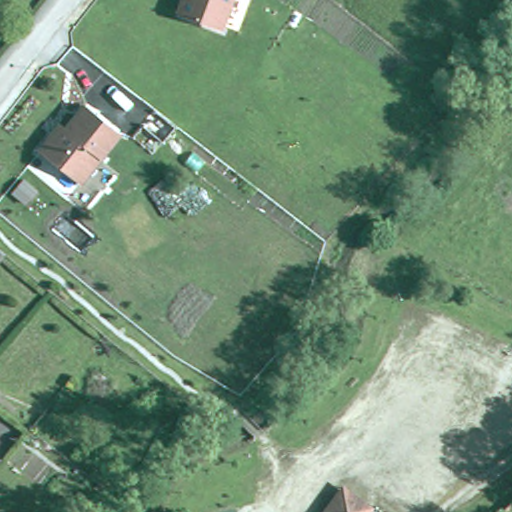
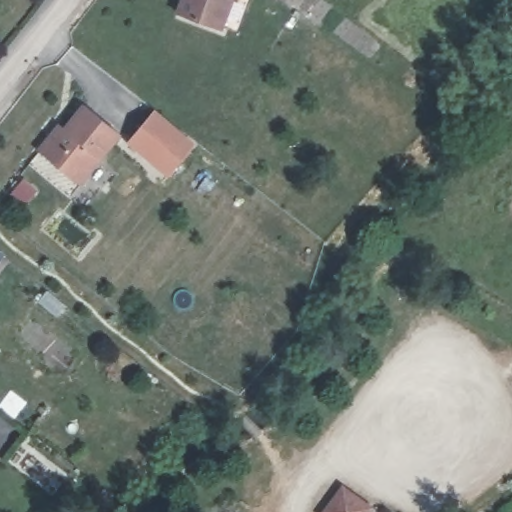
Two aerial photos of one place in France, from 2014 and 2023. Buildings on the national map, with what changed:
unchanged [(186,20),(191,0),(239,0),(228,36),(186,20)]
new [(196,141),(168,176),(126,141),(154,108),(196,141)]
unchanged [(119,143),(77,191),(38,158),(51,143),(59,133),(65,137),(84,115),(119,143)]
unchanged [(0,270),(0,251),(9,259),(0,270)]
unchanged [(343,493),(370,512),(329,512),(343,493)]

